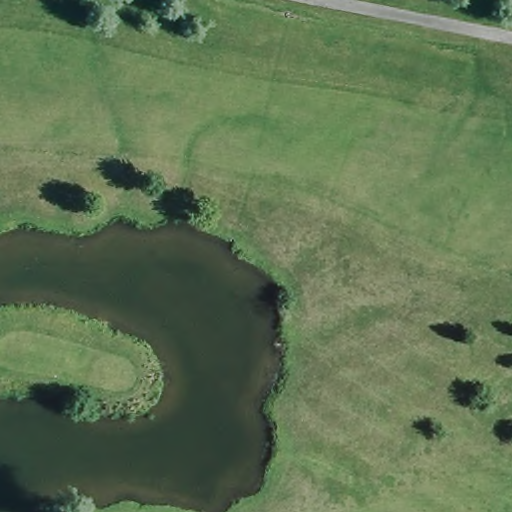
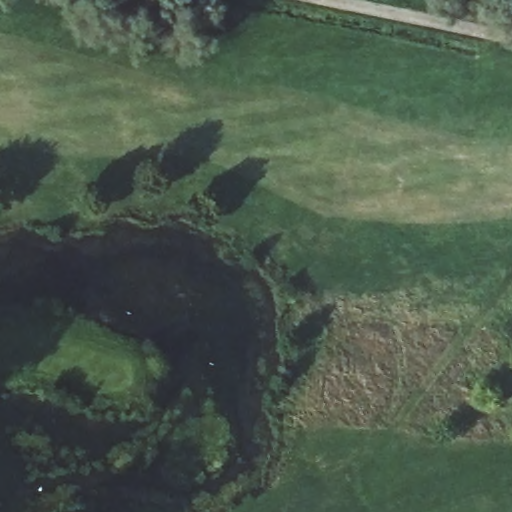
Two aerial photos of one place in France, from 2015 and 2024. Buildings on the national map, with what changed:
[]

